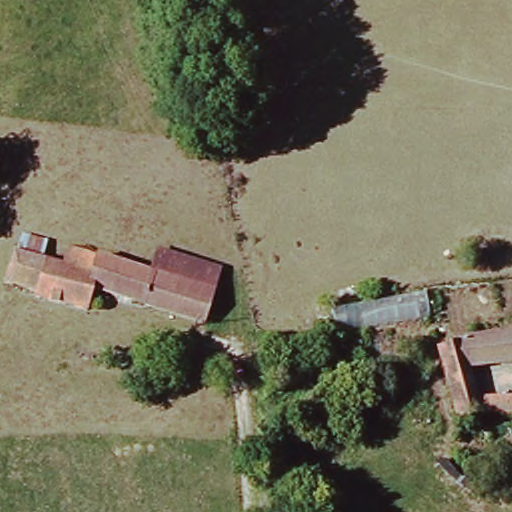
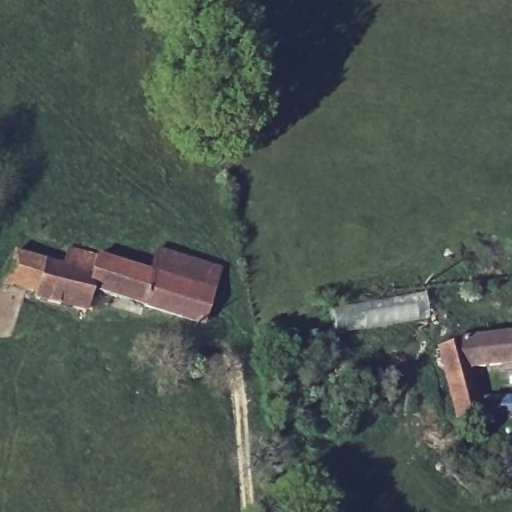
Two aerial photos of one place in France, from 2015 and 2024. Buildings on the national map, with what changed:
unchanged [(6,256),(62,270),(66,253),(147,271),(152,250),(219,263),(208,319),(89,296),(86,308),(0,287),(0,281),(6,256)]
unchanged [(476,400),(512,397),(512,419),(461,427),(444,352),(465,348),(464,340),(512,334),(512,364),(474,367),(476,400)]

